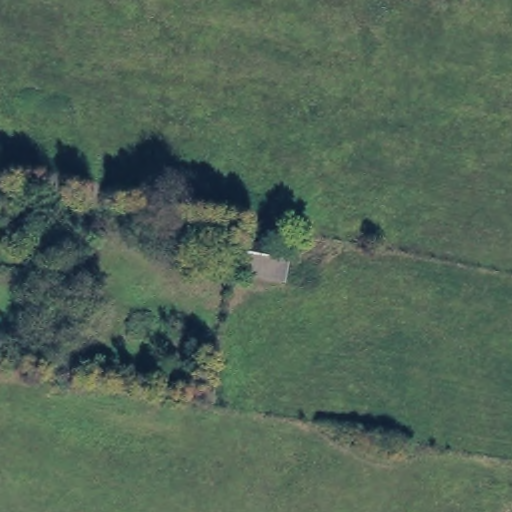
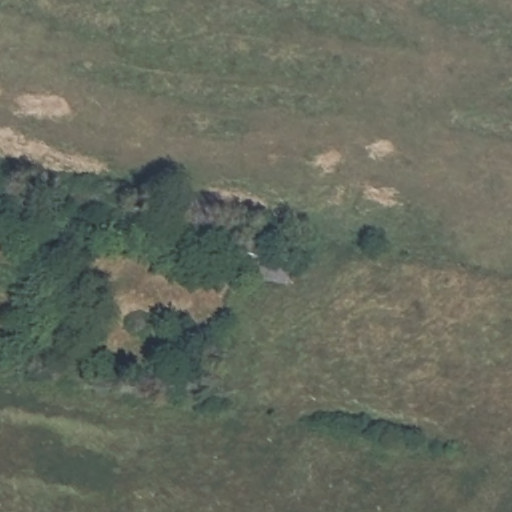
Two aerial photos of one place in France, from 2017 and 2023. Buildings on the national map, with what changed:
unchanged [(293,253),(286,288),(239,277),(246,243),(293,253)]

